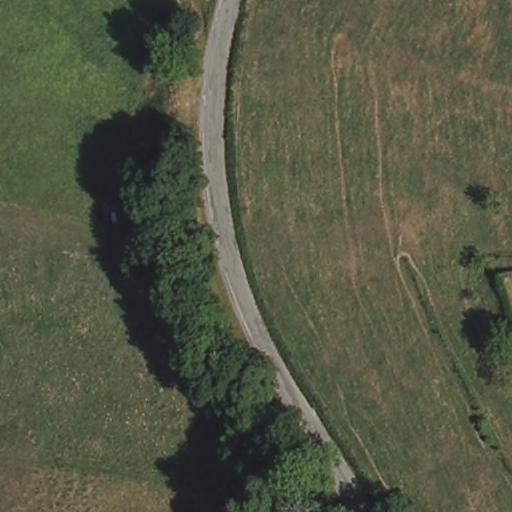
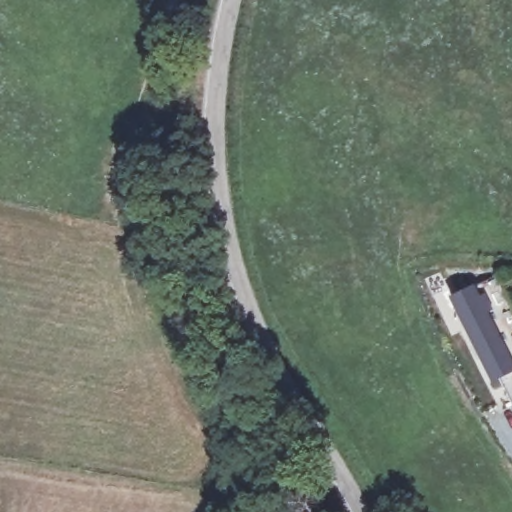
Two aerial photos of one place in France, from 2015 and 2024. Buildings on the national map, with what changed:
new [(494,277),(503,294),(512,317),(512,403),(499,378),(491,383),(449,299),(475,287),(494,277)]

